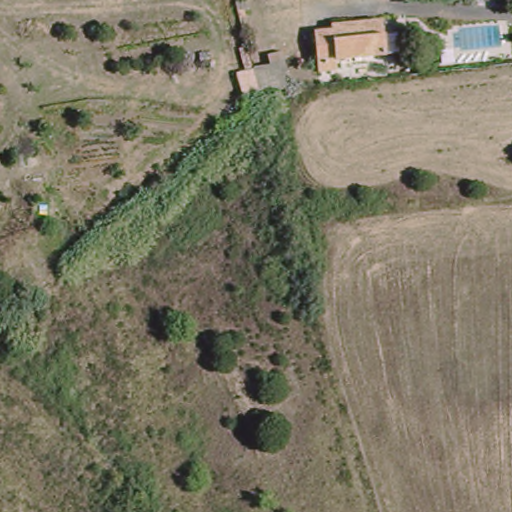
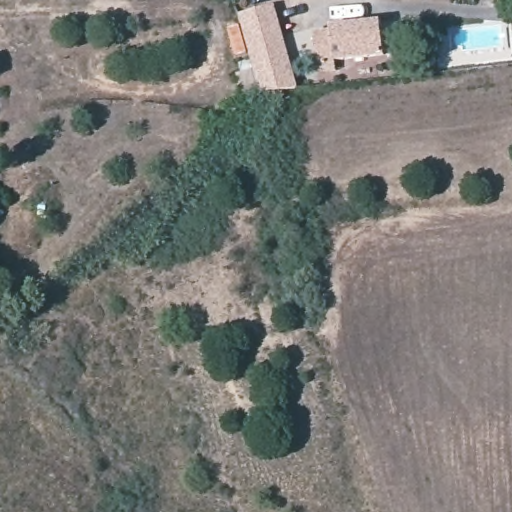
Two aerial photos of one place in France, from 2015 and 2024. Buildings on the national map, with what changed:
new [(299,87),(262,92),(241,95),(237,72),(256,68),(239,13),(275,3),(299,87)]
unchanged [(314,37),(330,34),(330,29),(380,24),(384,60),(318,68),(314,37)]
demolished [(271,66),(274,76),(284,76),(286,90),(259,93),(253,69),(271,66)]

